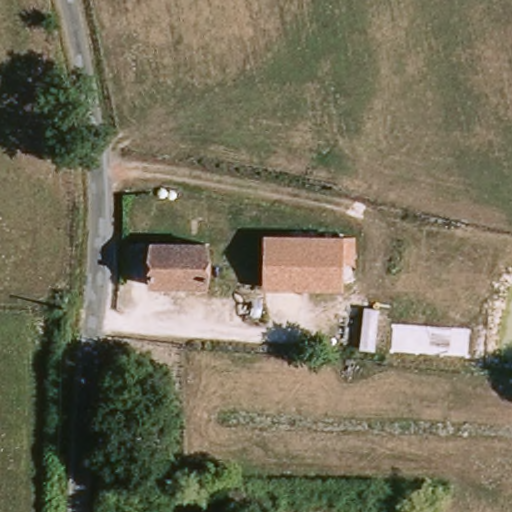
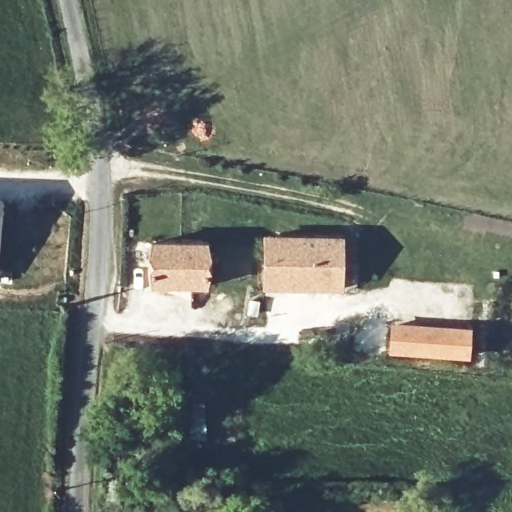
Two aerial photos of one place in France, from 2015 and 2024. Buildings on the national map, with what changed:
unchanged [(348,260),(337,260),(337,290),(259,290),(259,237),(348,238),(348,260)]
unchanged [(148,293),(148,245),(177,245),(177,293),(148,293)]
unchanged [(206,245),(206,293),(177,293),(177,245),(206,245)]
new [(469,359),(389,354),(390,324),(471,329),(469,359)]

